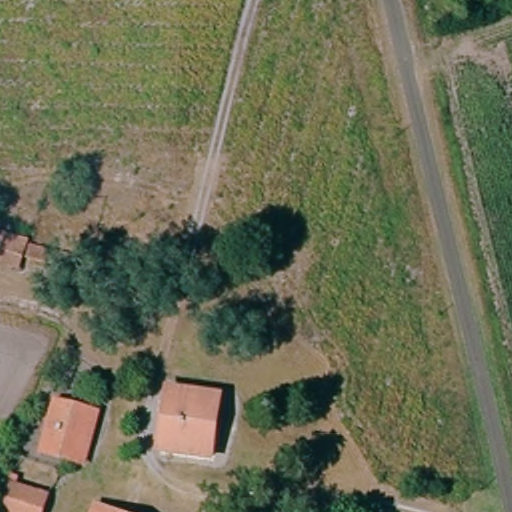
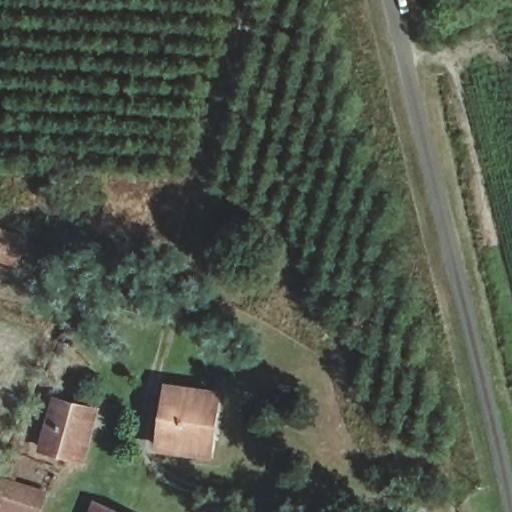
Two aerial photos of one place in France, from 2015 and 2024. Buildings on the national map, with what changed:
unchanged [(92,389),(69,381),(74,364),(100,374),(92,389)]
unchanged [(204,456),(168,449),(176,382),(215,389),(204,456)]
unchanged [(81,460),(43,448),(56,400),(96,413),(81,460)]
unchanged [(21,506),(18,512),(0,512),(0,483),(2,476),(44,488),(38,511),(21,506)]
unchanged [(122,512),(89,512),(95,500),(122,512)]

